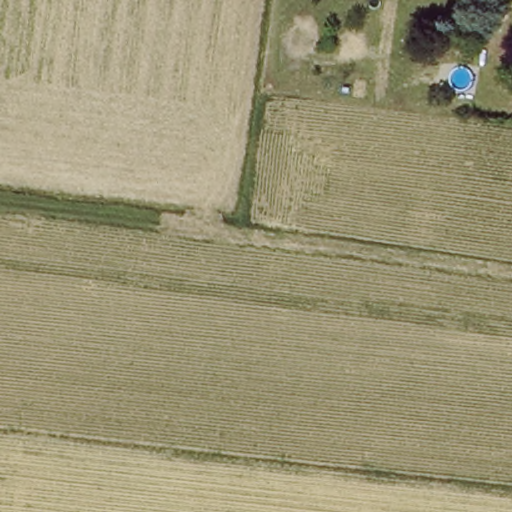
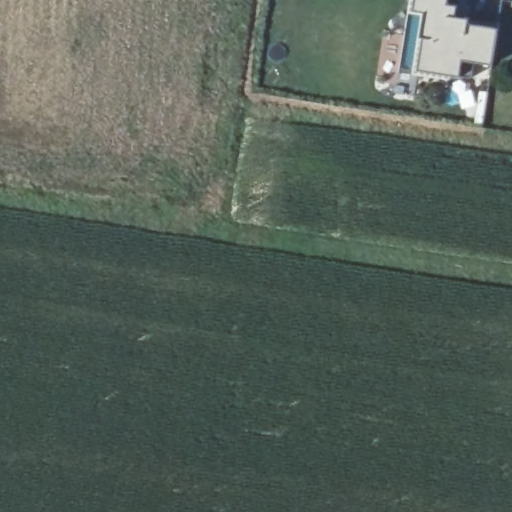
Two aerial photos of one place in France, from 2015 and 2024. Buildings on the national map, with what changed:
new [(460,8),(458,17),(470,21),(470,25),(499,29),(493,63),(465,57),(460,76),(419,70),(429,11),(415,10),(417,0),(448,0),(447,5),(460,8)]

